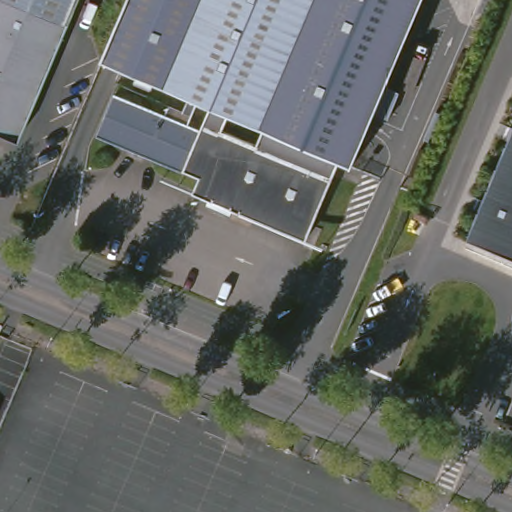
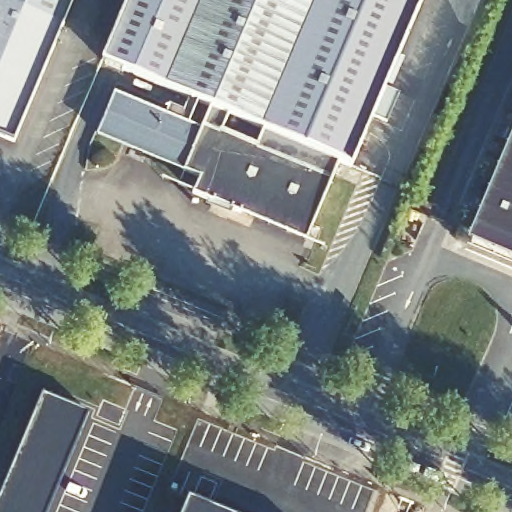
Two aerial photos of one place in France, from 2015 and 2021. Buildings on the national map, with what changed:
unchanged [(15,140),(0,134),(0,0),(74,0),(15,140)]
unchanged [(303,236),(209,196),(215,180),(197,172),(96,130),(113,91),(166,114),(169,105),(180,109),(187,96),(163,86),(99,60),(124,0),(419,0),(348,166),(335,160),(303,236)]
unchanged [(475,237),(512,152),(512,253),(475,237)]
new [(89,412),(47,512),(0,512),(0,491),(41,392),(89,412)]
new [(221,512),(181,512),(187,498),(221,512)]

